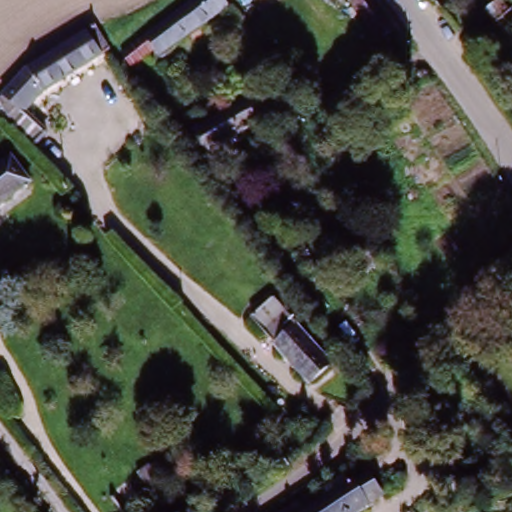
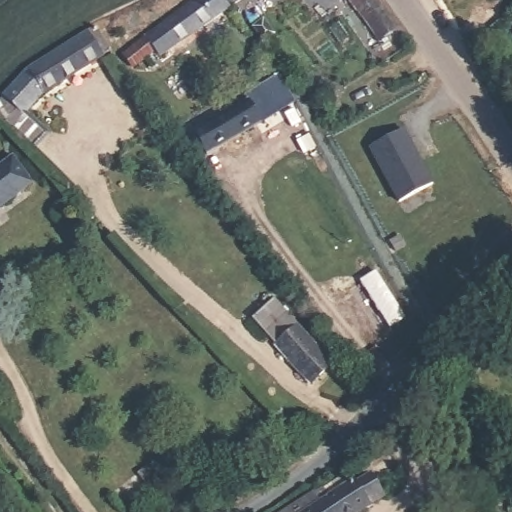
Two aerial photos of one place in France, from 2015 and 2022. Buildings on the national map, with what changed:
unchanged [(228,8),(157,56),(150,51),(128,65),(119,52),(197,0),(223,0),(228,8)]
unchanged [(379,38),(355,0),(376,0),(395,28),(379,38)]
unchanged [(107,42),(47,84),(42,79),(9,102),(0,93),(31,61),(94,20),(102,29),(107,42)]
new [(245,95),(280,74),(297,105),(260,121),(248,100),(245,95)]
unchanged [(0,112),(0,94),(0,93),(9,102),(42,79),(47,84),(22,107),(42,127),(33,137),(5,111),(0,113),(0,112)]
unchanged [(248,100),(260,121),(202,151),(192,131),(248,100)]
new [(429,185),(395,202),(367,148),(400,131),(429,185)]
unchanged [(10,154),(30,177),(0,203),(0,163),(10,154)]
unchanged [(313,386),(268,338),(253,322),(273,302),(290,318),(335,363),(313,386)]
unchanged [(328,492),(363,469),(381,497),(357,512),(278,512),(322,484),(328,492)]

